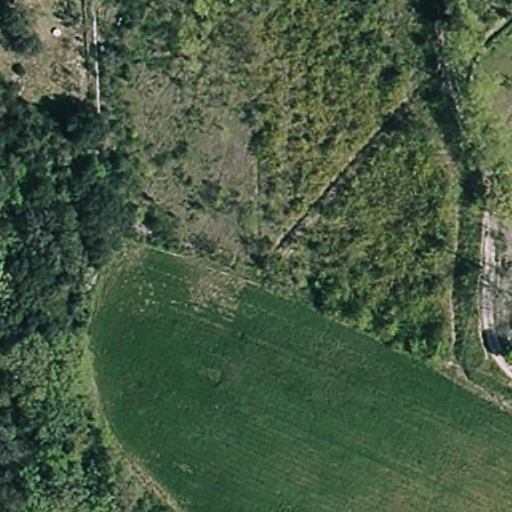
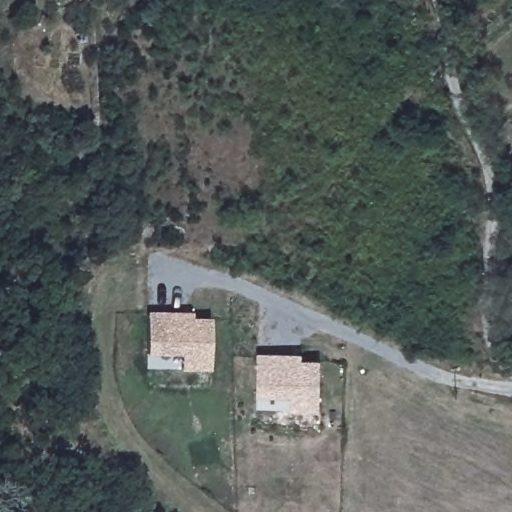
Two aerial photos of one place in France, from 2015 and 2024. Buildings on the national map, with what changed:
new [(192,312),(192,318),(211,318),(210,371),(181,371),(181,355),(147,355),(147,312),(192,312)]
new [(302,353),(302,359),(320,360),(318,412),(290,412),(290,397),(257,397),(257,353),(302,353)]

